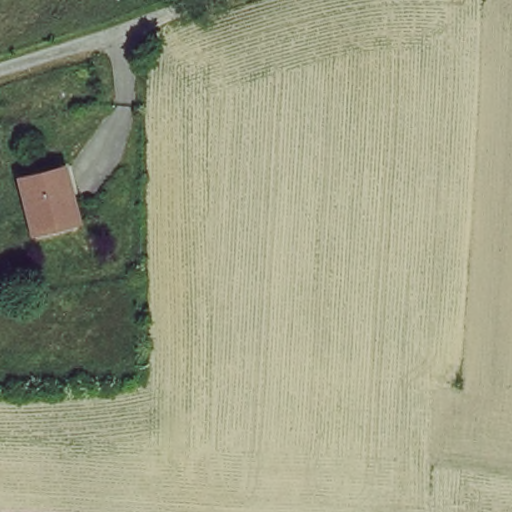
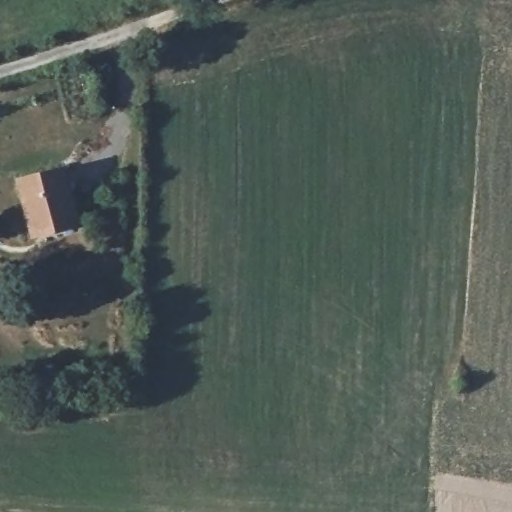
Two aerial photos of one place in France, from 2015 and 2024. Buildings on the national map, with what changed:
unchanged [(29,176),(78,176),(80,231),(31,232),(29,176)]

